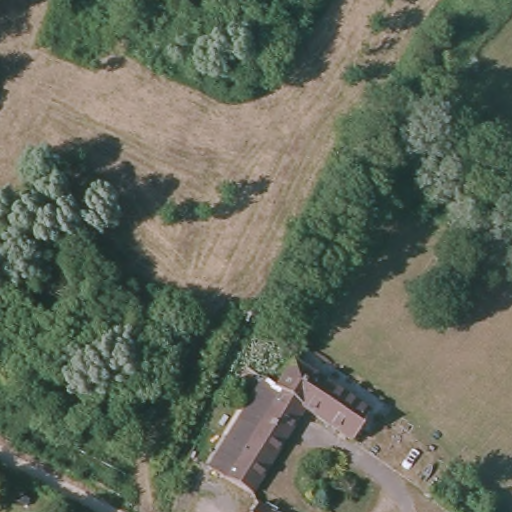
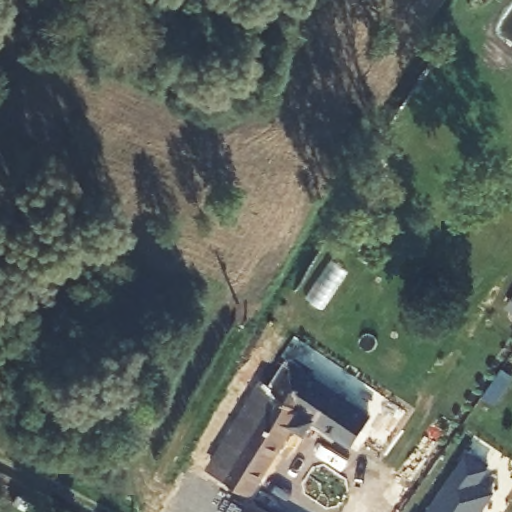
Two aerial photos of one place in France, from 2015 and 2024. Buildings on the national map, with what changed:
unchanged [(369,414),(353,439),(301,409),(251,493),(209,471),(261,379),(270,385),(283,361),(369,414)]
new [(464,456),(488,471),(481,481),(496,491),(482,512),(424,512),(464,456)]
unchanged [(254,500),(274,512),(247,512),(254,500)]

